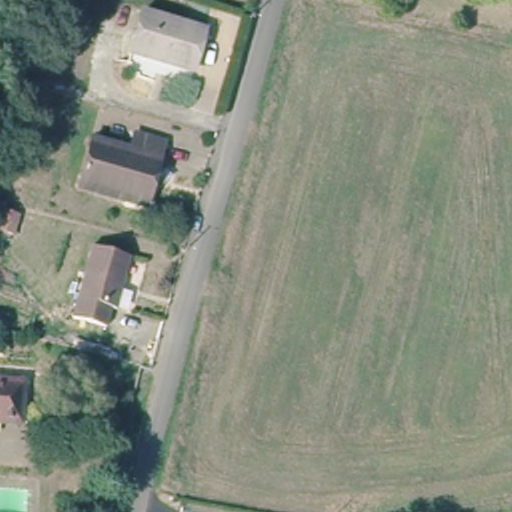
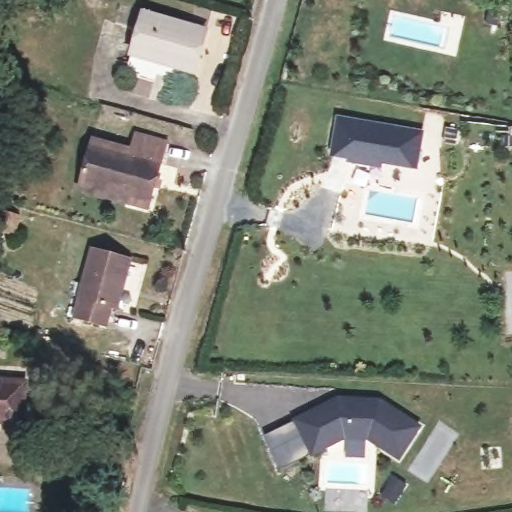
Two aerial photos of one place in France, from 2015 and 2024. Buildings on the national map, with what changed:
unchanged [(188,69),(132,51),(145,7),(201,25),(188,69)]
new [(488,15),(500,17),(497,29),(486,26),(488,15)]
new [(416,169),(381,163),(380,168),(346,162),(347,158),(331,155),(337,117),(422,132),(416,169)]
unchanged [(74,179),(85,138),(125,149),(128,133),(163,143),(144,208),(109,199),(72,190),(74,179)]
unchanged [(112,307),(107,305),(102,329),(66,320),(84,246),(126,256),(112,307)]
unchanged [(19,425),(0,423),(0,382),(19,384),(19,425)]
new [(293,418),(334,399),(379,400),(419,426),(399,461),(366,440),(345,439),(311,456),(293,418)]
new [(394,476),(407,485),(396,502),(383,494),(394,476)]

